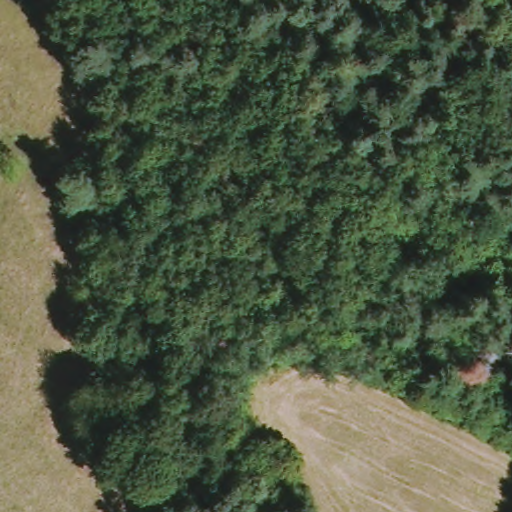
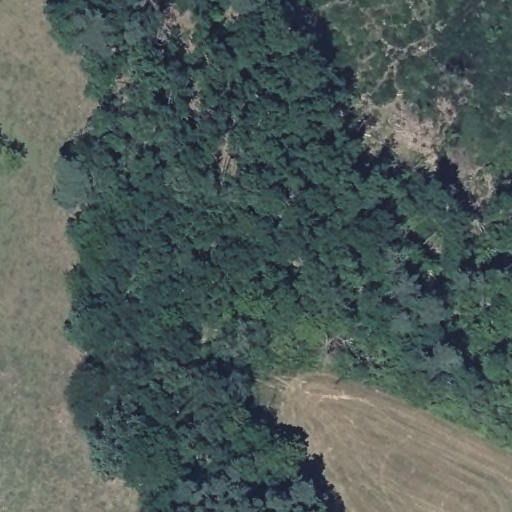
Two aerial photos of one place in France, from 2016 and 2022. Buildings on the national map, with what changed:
[]

